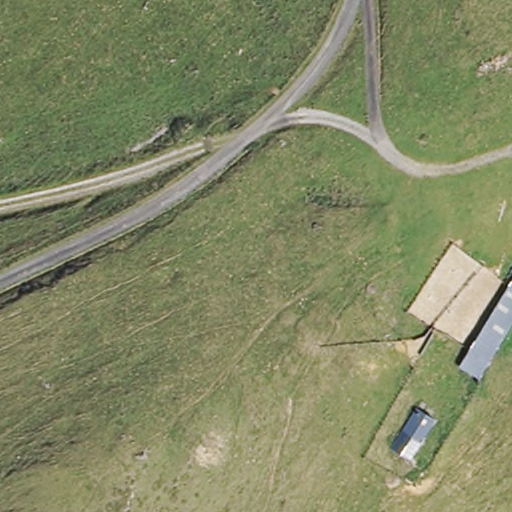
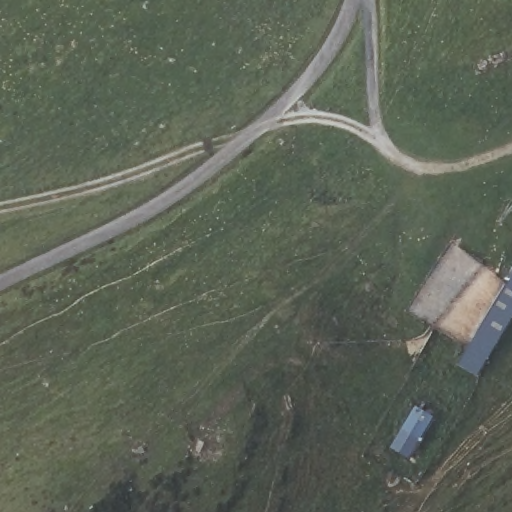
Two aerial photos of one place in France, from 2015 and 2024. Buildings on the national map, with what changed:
unchanged [(482,382),(459,367),(512,282),(512,338),(482,382)]
unchanged [(429,443),(412,465),(391,450),(417,410),(441,423),(429,443)]

